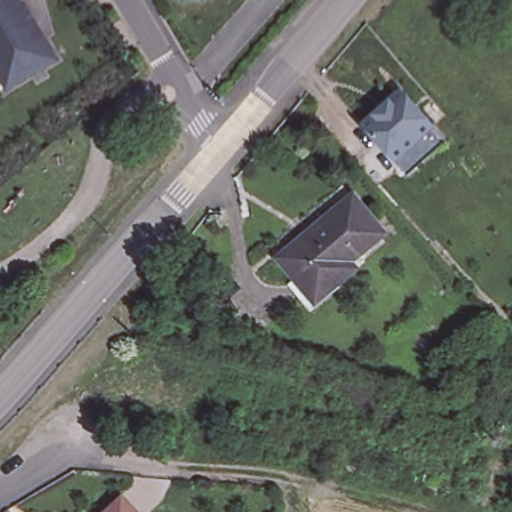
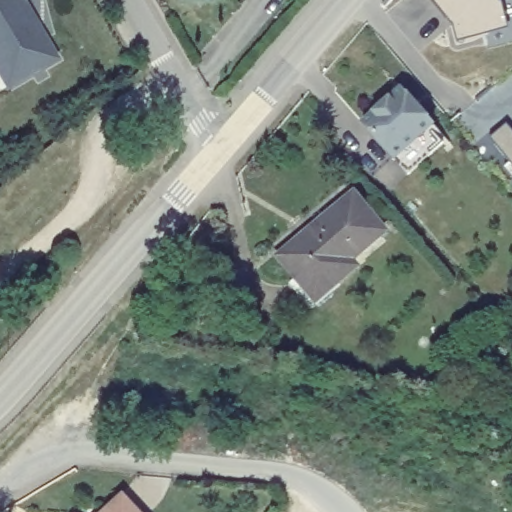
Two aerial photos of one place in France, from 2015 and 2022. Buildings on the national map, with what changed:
unchanged [(20,1),(56,60),(7,88),(0,76),(0,0),(22,0),(20,1)]
new [(502,3),(507,28),(457,39),(452,24),(432,0),(499,0),(502,3)]
unchanged [(407,174),(395,160),(364,124),(375,114),(375,107),(384,100),(391,100),(402,90),(434,126),(430,129),(442,143),(407,174)]
new [(489,137),(507,123),(512,128),(512,165),(489,137)]
unchanged [(380,231),(349,257),(354,265),(312,301),(276,257),(350,195),(380,231)]
unchanged [(121,494),(138,512),(102,512),(109,505),(121,494)]

